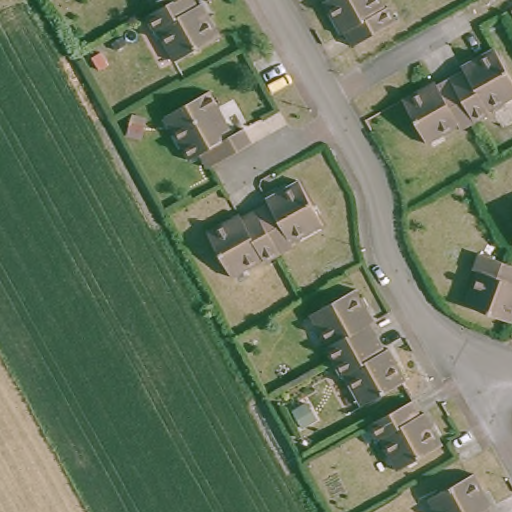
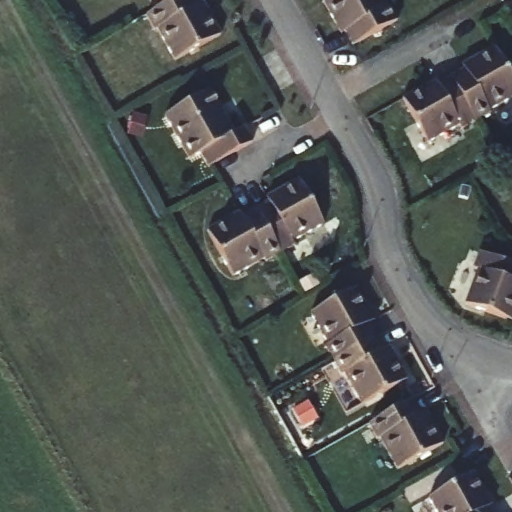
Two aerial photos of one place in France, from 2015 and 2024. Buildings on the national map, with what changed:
unchanged [(175,0),(194,0),(197,4),(202,1),(220,34),(175,59),(157,29),(152,31),(145,18),(158,10),(175,0)]
unchanged [(153,0),(175,0),(158,10),(153,0)]
unchanged [(380,0),(383,6),(388,4),(395,18),(350,44),(344,33),(340,34),(322,1),(325,0),(380,0)]
unchanged [(457,64),(455,58),(488,39),(512,80),(512,86),(483,104),(485,108),(470,115),(442,72),(457,64)]
unchanged [(470,115),(458,122),(454,119),(424,136),(399,94),(419,81),(442,72),(470,115)]
unchanged [(205,165),(198,154),(187,159),(160,115),(207,88),(230,130),(238,125),(250,139),(207,163),(205,165)]
unchanged [(250,214),(263,207),(262,202),(295,183),(318,225),(287,243),(290,249),(273,259),(250,214)]
unchanged [(262,265),(258,263),(227,280),(202,236),(237,214),(240,220),(250,214),(273,259),(262,265)]
unchanged [(512,266),(512,320),(465,303),(476,269),(472,267),(477,254),(506,264),(512,266)]
unchanged [(326,342),(331,339),(312,308),(356,282),(377,315),(372,319),(380,333),(334,358),(326,342)]
unchanged [(380,333),(387,344),(390,343),(409,374),(364,398),(347,367),(342,369),(334,358),(380,333)]
unchanged [(413,398),(422,409),(425,408),(442,439),(395,464),(380,436),(377,437),(368,422),(413,398)]
unchanged [(438,491),(482,466),(500,499),(496,501),(502,512),(449,512),(438,491)]

